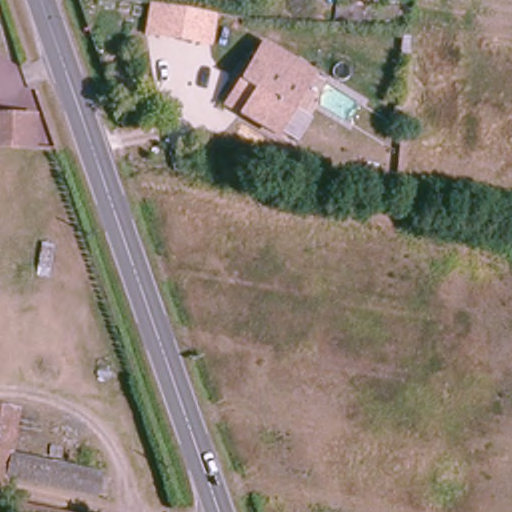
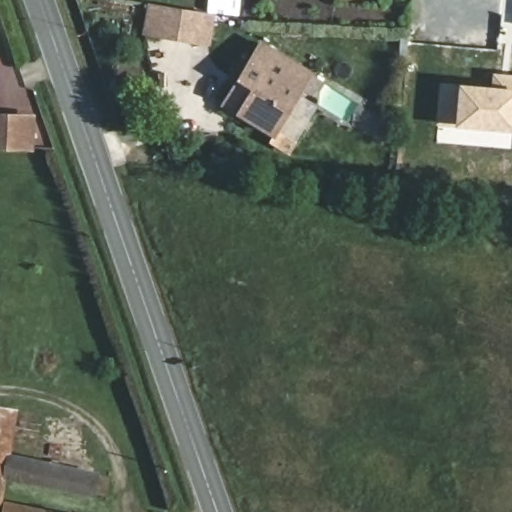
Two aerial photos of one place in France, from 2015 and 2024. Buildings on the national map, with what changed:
unchanged [(210,47),(142,36),(149,2),(215,13),(210,47)]
unchanged [(295,63),(310,71),(300,90),(278,135),(230,112),(232,96),(261,45),(295,63)]
new [(454,121),(435,119),(438,82),(494,87),(496,73),(512,74),(512,132),(454,127),(454,121)]
unchanged [(0,148),(0,117),(28,117),(28,148),(0,148)]
unchanged [(3,403),(0,435),(0,403),(3,403)]
unchanged [(91,477),(89,501),(0,487),(0,462),(91,477)]
unchanged [(42,512),(0,512),(0,505),(42,512)]

